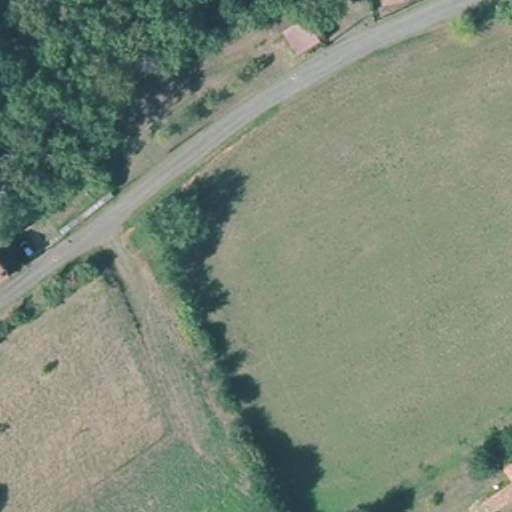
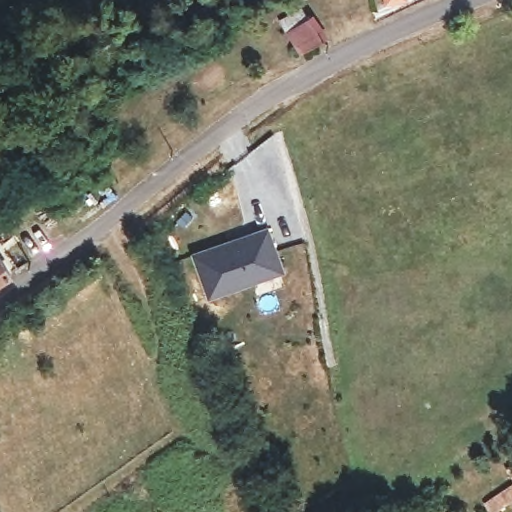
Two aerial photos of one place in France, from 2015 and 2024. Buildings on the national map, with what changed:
new [(252,233),(268,227),(283,270),(210,297),(195,255),(229,242),(252,233)]
unchanged [(17,274),(0,286),(0,245),(17,274)]
unchanged [(512,486),(502,492),(496,482),(512,473),(512,486)]

